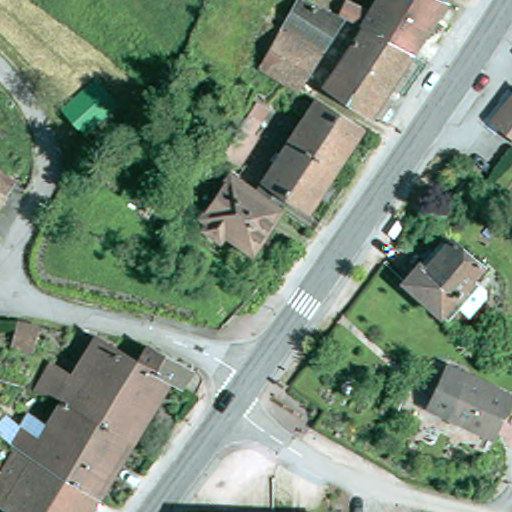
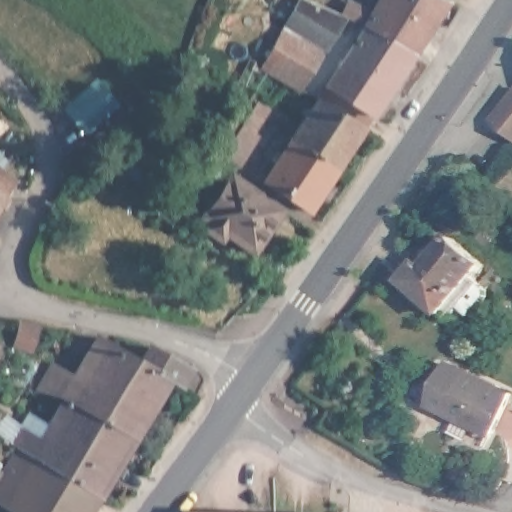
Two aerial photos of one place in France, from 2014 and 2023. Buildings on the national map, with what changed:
unchanged [(409,61),(366,40),(360,37),(357,36),(380,0),(414,0),(435,7),(441,10),(409,61)]
unchanged [(414,0),(441,0),(435,7),(414,0)]
unchanged [(327,37),(296,23),(306,2),(338,17),(327,37)]
unchanged [(264,64),(273,47),(270,45),(277,31),(317,54),(298,85),(284,77),(276,72),(264,64)]
unchanged [(370,121),(323,94),(360,37),(366,40),(409,61),(370,121)]
unchanged [(83,135),(65,110),(99,84),(118,109),(83,135)]
unchanged [(266,129),(247,157),(230,147),(258,104),(265,92),(276,98),(278,100),(271,112),(262,126),(266,129)]
unchanged [(500,107),(502,109),(512,97),(512,139),(488,122),(500,107)]
unchanged [(321,100),(368,127),(342,167),(296,140),(295,139),(321,100)]
unchanged [(315,207),(287,192),(279,204),(260,192),(295,139),(296,140),(342,167),(315,207)]
unchanged [(0,208),(0,173),(17,186),(0,208)]
unchanged [(250,246),(220,227),(215,233),(201,224),(205,217),(198,214),(226,173),(233,177),(260,192),(279,204),(250,246)]
unchanged [(500,195),(508,183),(512,186),(512,200),(510,202),(500,195)]
unchanged [(470,316),(460,307),(450,319),(418,291),(408,282),(440,247),(445,251),(456,239),(485,264),(473,277),(481,283),(486,288),(487,297),(470,316)]
unchanged [(39,339),(16,335),(18,313),(41,317),(39,339)]
unchanged [(46,388),(43,387),(56,367),(76,378),(108,336),(121,345),(128,336),(137,341),(132,349),(145,357),(154,344),(195,368),(188,382),(176,376),(142,434),(140,433),(93,411),(71,401),(63,397),(46,388)]
unchanged [(432,406),(450,366),(512,392),(512,397),(495,433),(432,406)]
unchanged [(108,491),(52,460),(40,452),(25,445),(20,440),(38,412),(56,422),(71,401),(93,411),(140,433),(142,434),(108,491)]
unchanged [(6,506),(0,502),(0,484),(25,445),(40,452),(6,506)]
unchanged [(108,491),(96,512),(18,512),(6,506),(40,452),(52,460),(108,491)]

